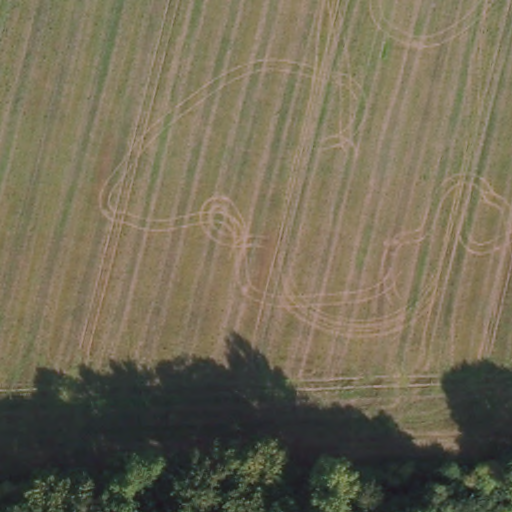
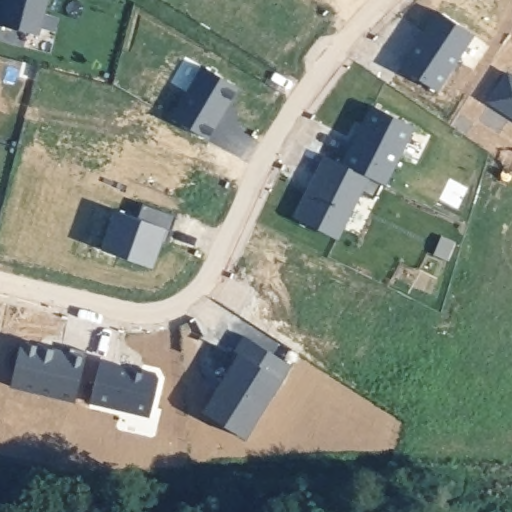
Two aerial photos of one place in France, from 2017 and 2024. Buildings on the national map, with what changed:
new [(0,24),(0,16),(4,0),(7,0),(45,0),(37,32),(0,24)]
new [(473,34),(436,90),(399,67),(435,11),(473,34)]
new [(238,87),(208,138),(171,117),(200,67),(238,87)]
new [(486,102),(506,71),(512,75),(512,118),(486,102)]
new [(414,127),(384,186),(379,182),(372,196),(361,191),(337,240),(292,217),(322,154),(340,162),(371,106),(414,127)]
new [(166,240),(163,239),(152,268),(100,250),(115,211),(134,217),(143,204),(176,217),(166,240)]
new [(233,350),(243,335),(289,365),(280,378),(283,381),(246,439),(201,412),(238,353),(233,350)]
new [(69,352),(70,347),(87,352),(75,402),(10,387),(21,341),(69,352)]
new [(140,372),(141,369),(155,372),(159,378),(149,417),(89,402),(101,361),(140,372)]

